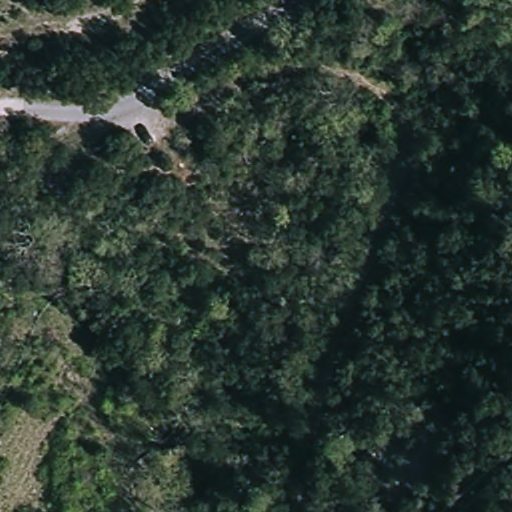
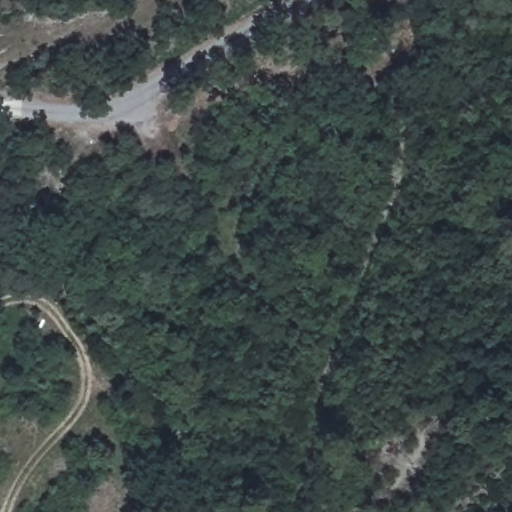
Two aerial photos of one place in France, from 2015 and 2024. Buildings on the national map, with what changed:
[]

